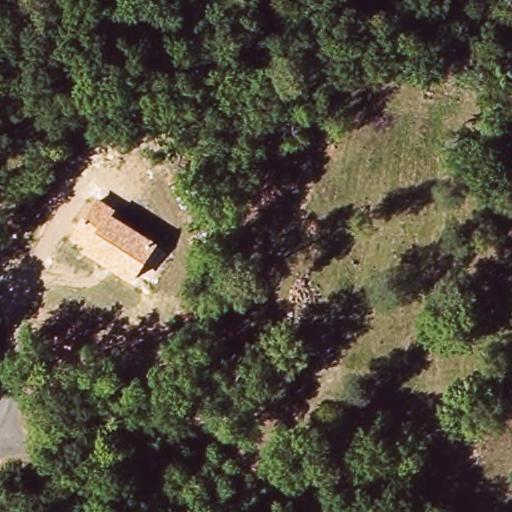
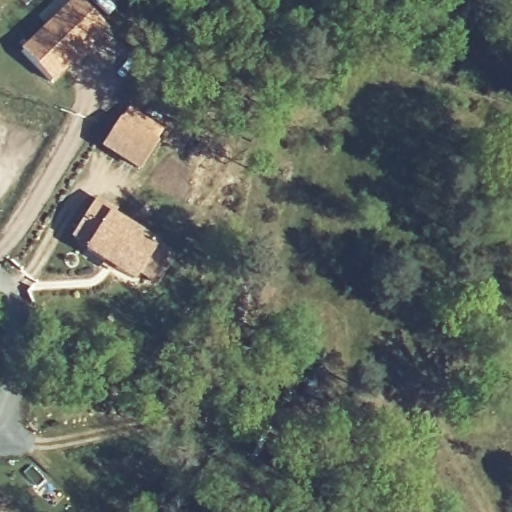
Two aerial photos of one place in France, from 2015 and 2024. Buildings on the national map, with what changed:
new [(74,0),(79,0),(107,31),(53,84),(21,50),(74,0)]
new [(128,107),(157,127),(150,138),(157,143),(137,172),(101,147),(128,107)]
unchanged [(112,217),(158,245),(132,283),(84,253),(87,247),(71,239),(96,198),(116,211),(112,217)]
demolished [(288,382),(270,380),(277,343),(296,348),(288,382)]

